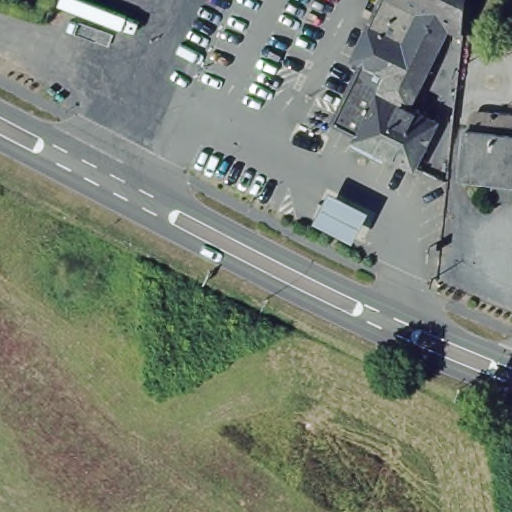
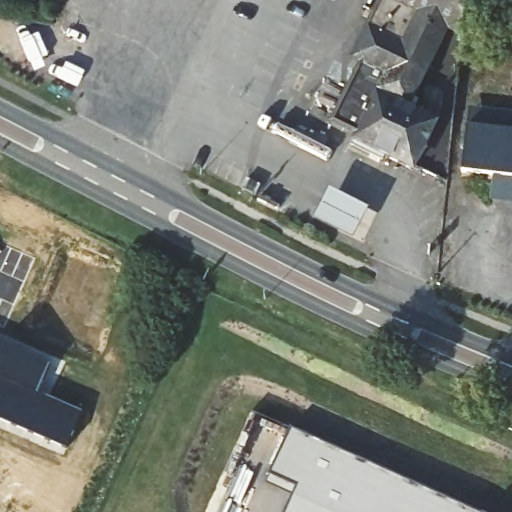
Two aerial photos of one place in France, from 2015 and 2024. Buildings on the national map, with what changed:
unchanged [(382,0),(468,0),(463,37),(449,30),(413,104),(437,116),(412,165),(385,150),(381,158),(351,143),(385,74),(361,65),(349,60),(365,31),(382,0)]
unchanged [(460,123),(462,103),(488,105),(503,106),(495,170),(455,164),(460,123)]
unchanged [(495,170),(503,106),(512,107),(512,182),(494,178),(495,170)]
new [(494,178),(512,182),(512,203),(491,201),(494,178)]
unchanged [(307,218),(325,182),(368,203),(357,240),(307,218)]
new [(50,365),(38,394),(83,413),(67,449),(0,419),(0,343),(50,365)]
new [(268,476),(289,427),(490,512),(283,512),(294,487),(268,476)]

